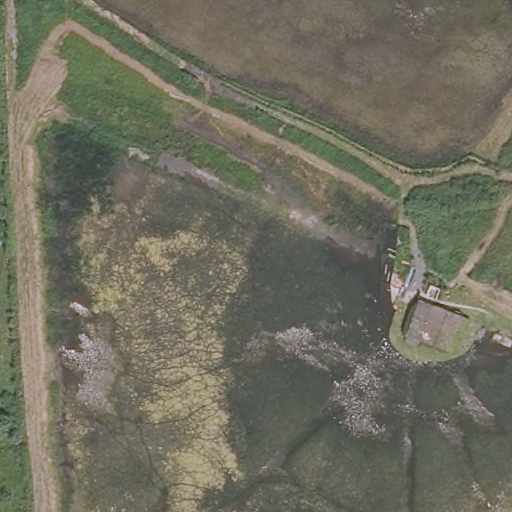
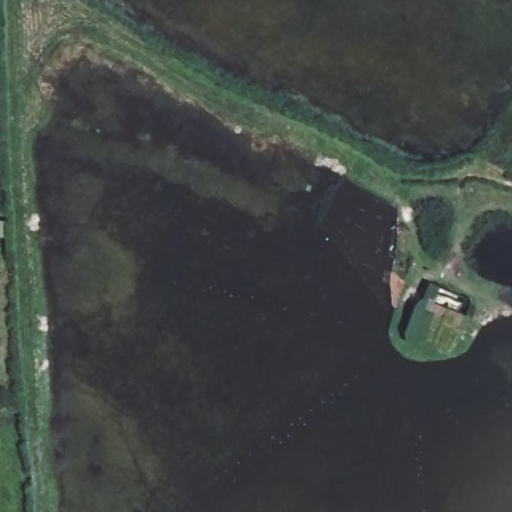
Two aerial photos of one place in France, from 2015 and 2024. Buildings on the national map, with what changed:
unchanged [(452,347),(410,330),(435,297),(466,317),(452,347)]

